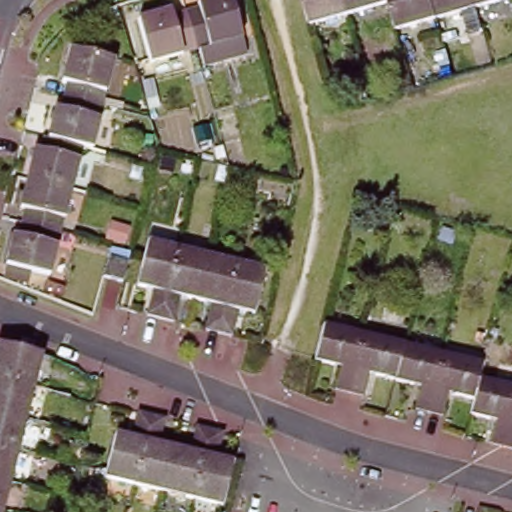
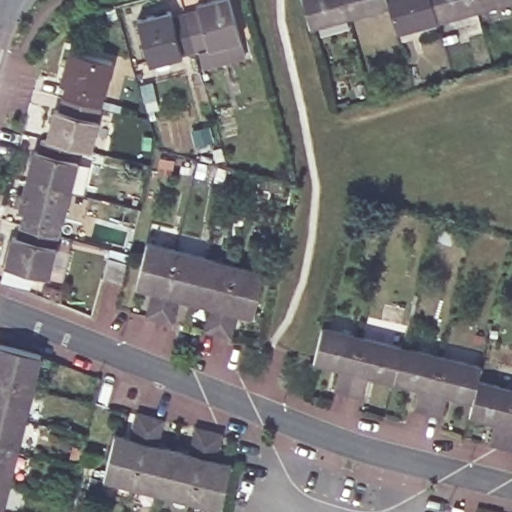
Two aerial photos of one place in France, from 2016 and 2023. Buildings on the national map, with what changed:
unchanged [(196,11),(194,7),(219,0),(227,0),(243,57),(199,70),(194,53),(183,15),(196,11)]
unchanged [(349,12),(309,24),(302,0),(346,0),(349,12)]
unchanged [(388,1),(349,12),(346,0),(387,0),(388,1)]
unchanged [(438,18),(396,30),(388,1),(387,0),(432,0),(438,18)]
unchanged [(476,7),(438,18),(432,0),(474,0),(476,7)]
unchanged [(476,7),(474,0),(503,0),(476,7)]
unchanged [(194,53),(146,66),(133,23),(166,15),(167,20),(183,15),(194,53)]
unchanged [(60,80),(54,79),(62,49),(105,60),(96,102),(56,94),(60,80)]
unchanged [(85,146),(73,144),(41,136),(48,109),(53,110),(56,94),(96,102),(85,146)]
unchanged [(63,188),(20,178),(27,148),(31,149),(34,135),(41,136),(73,144),(63,188)]
unchanged [(18,209),(13,207),(20,178),(63,188),(53,230),(13,221),(18,209)]
unchanged [(53,230),(43,274),(0,264),(6,234),(10,235),(13,221),(53,230)]
unchanged [(146,314),(153,288),(136,285),(147,240),(177,248),(159,317),(146,314)]
unchanged [(101,282),(106,261),(108,247),(130,252),(127,265),(121,287),(101,282)]
unchanged [(180,296),(173,321),(159,317),(177,248),(206,255),(195,300),(180,296)]
unchanged [(236,262),(218,331),(204,328),(210,303),(195,300),(206,255),(236,262)]
unchanged [(264,270),(253,314),(238,310),(231,335),(218,331),(236,262),(264,270)]
unchanged [(331,390),(338,367),(313,361),(321,326),(361,336),(346,395),(331,390)]
unchanged [(367,375),(361,398),(346,395),(361,336),(400,345),(392,380),(367,375)]
unchanged [(442,355),(427,413),(413,410),(419,387),(392,380),(400,345),(442,355)]
unchanged [(29,386),(0,379),(0,347),(37,356),(29,386)]
unchanged [(479,365),(475,379),(469,399),(447,394),(441,416),(427,413),(442,355),(479,365)]
unchanged [(21,419),(0,414),(0,379),(29,386),(21,419)]
unchanged [(512,388),(512,410),(503,447),(487,443),(493,420),(466,414),(469,399),(475,379),(512,388)]
unchanged [(103,476),(113,433),(129,437),(136,410),(152,413),(136,484),(103,476)]
unchanged [(503,447),(512,410),(512,449),(503,447)]
unchanged [(167,417),(161,445),(175,448),(164,491),(136,484),(152,413),(167,417)]
unchanged [(13,450),(0,447),(0,414),(21,419),(13,450)]
unchanged [(188,452),(194,424),(209,427),(193,498),(164,491),(175,448),(188,452)]
unchanged [(223,431),(216,459),(231,462),(220,505),(193,498),(209,427),(223,431)]
unchanged [(5,483),(0,482),(0,447),(13,450),(5,483)]
unchanged [(0,482),(5,483),(0,507),(0,482)]

